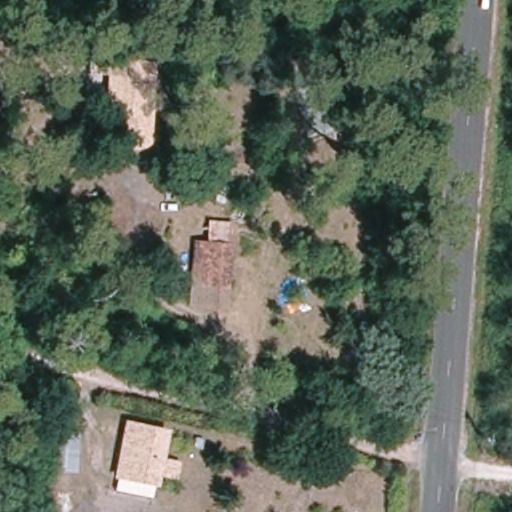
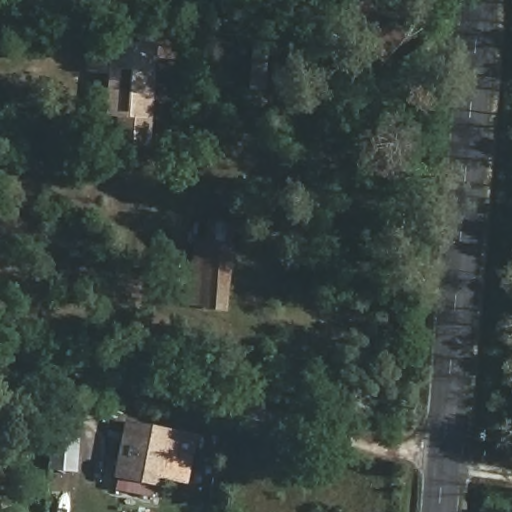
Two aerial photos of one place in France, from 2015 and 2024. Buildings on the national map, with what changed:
unchanged [(116,44),(154,47),(152,63),(154,63),(150,115),(110,112),(114,60),(116,44)]
unchanged [(232,246),(227,308),(191,305),(196,243),(232,246)]
unchanged [(117,470),(128,419),(168,427),(157,479),(117,470)]

